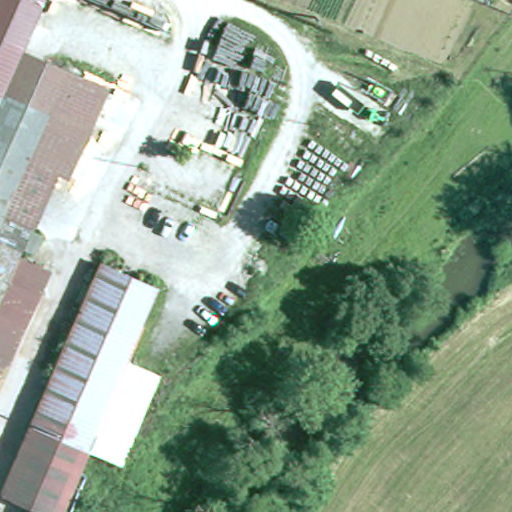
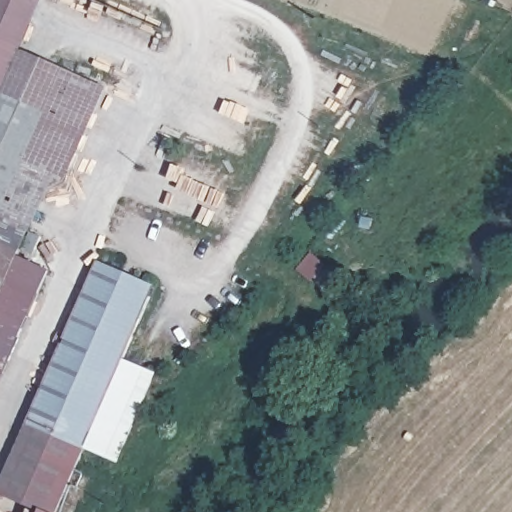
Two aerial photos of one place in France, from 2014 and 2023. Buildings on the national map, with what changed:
unchanged [(34,54),(26,71),(25,72),(0,60),(0,0),(41,0),(23,48),(34,54)]
unchanged [(34,54),(46,29),(124,66),(85,153),(76,149),(50,203),(3,181),(33,117),(49,81),(26,71),(34,54)]
unchanged [(26,71),(49,81),(33,117),(3,181),(50,203),(38,228),(70,242),(11,377),(0,372),(0,60),(25,72),(26,71)]
unchanged [(115,365),(139,376),(148,380),(108,462),(100,458),(78,448),(50,512),(45,512),(0,492),(0,469),(98,261),(152,287),(115,365)]

